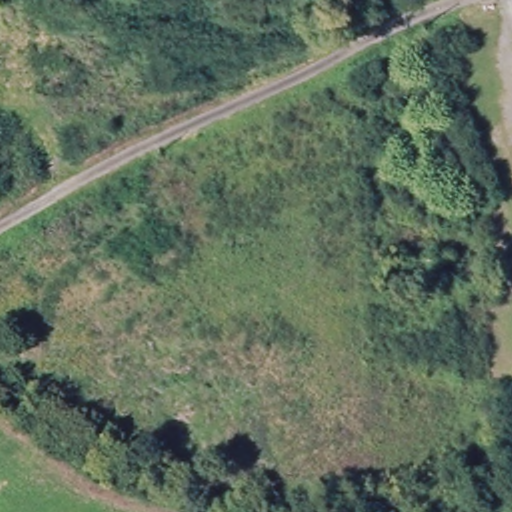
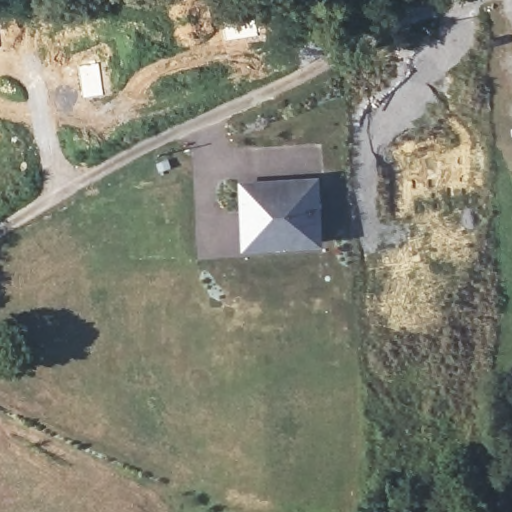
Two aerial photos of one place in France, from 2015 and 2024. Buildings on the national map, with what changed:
new [(326,240),(251,244),(248,189),(248,181),(288,179),(323,177),(326,240)]
unchanged [(393,252),(442,247),(443,261),(393,263),(393,252)]

